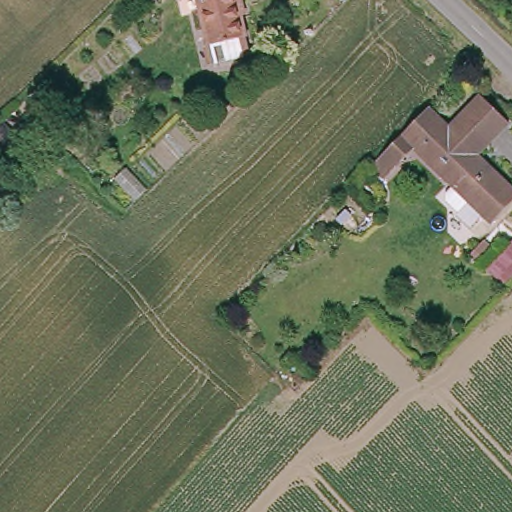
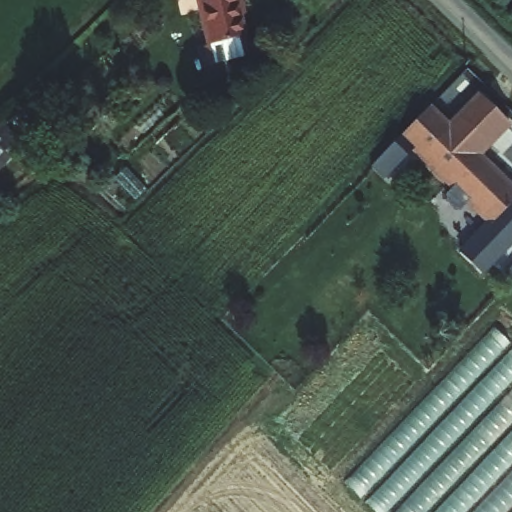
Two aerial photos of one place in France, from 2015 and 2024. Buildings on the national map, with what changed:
unchanged [(205,47),(194,0),(238,0),(242,16),(236,18),(241,38),(245,58),(240,60),(214,65),(208,66),(205,47)]
unchanged [(440,198),(451,187),(415,150),(391,175),(385,182),(371,168),(378,162),(430,109),(450,129),(481,99),(509,126),(477,157),(511,190),(483,219),(472,231),(440,198)]
unchanged [(25,147),(0,171),(0,124),(2,122),(25,147)]
new [(493,327),(512,345),(512,512),(373,512),(343,483),(493,327)]

